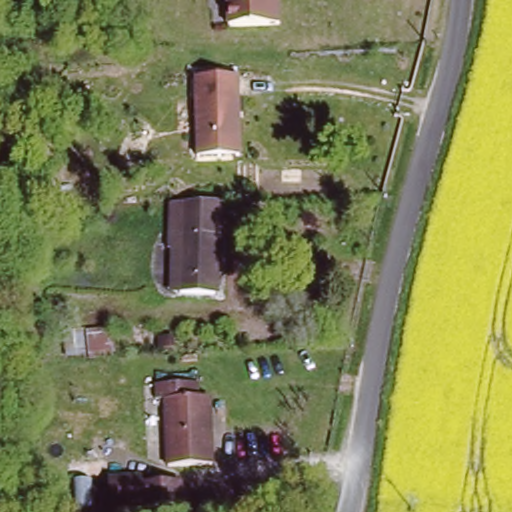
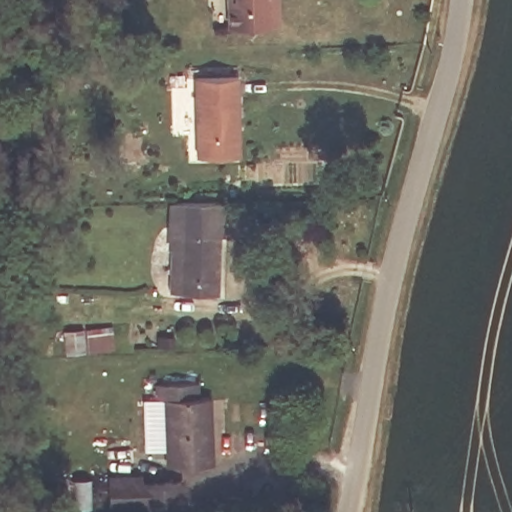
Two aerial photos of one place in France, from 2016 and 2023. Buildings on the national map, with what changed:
unchanged [(279,1),(279,27),(230,26),(229,0),(271,0),(279,1)]
unchanged [(238,75),(240,155),(195,155),(194,77),(238,75)]
unchanged [(174,246),(169,246),(169,201),(223,199),(224,231),(215,231),(216,291),(180,291),(175,291),(174,246)]
unchanged [(160,331),(174,331),(174,350),(160,351),(160,331)]
unchanged [(196,383),(197,400),(209,400),(211,466),(167,467),(166,402),(152,402),(152,384),(196,383)]

